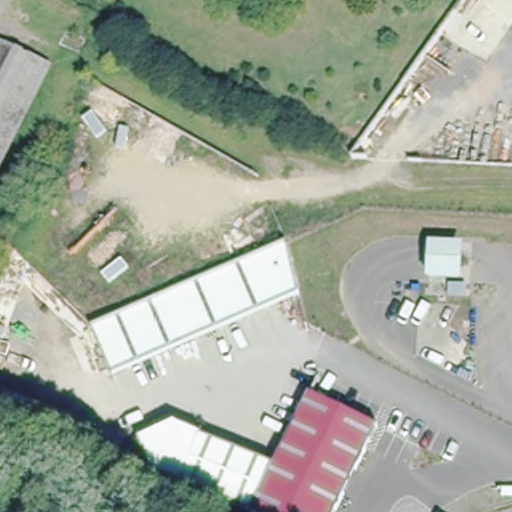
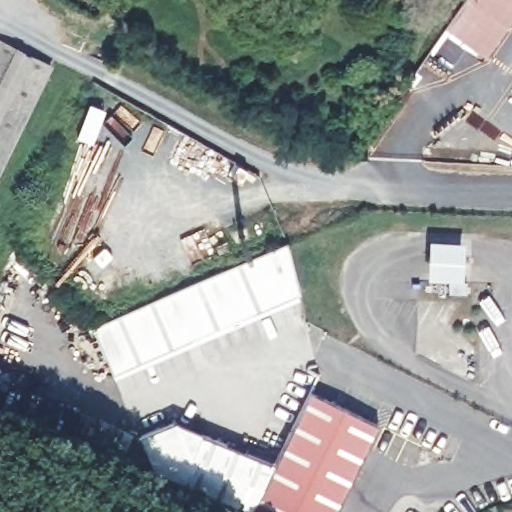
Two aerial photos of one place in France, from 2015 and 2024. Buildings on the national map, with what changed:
new [(512,0),(512,20),(486,56),(445,26),(463,0),(512,0)]
unchanged [(0,38),(43,59),(0,156),(0,38)]
unchanged [(462,275),(425,274),(426,239),(464,242),(462,275)]
unchanged [(295,261),(303,294),(117,376),(97,330),(101,329),(203,284),(266,256),(289,245),(295,261)]
unchanged [(279,461),(318,390),(382,423),(367,453),(338,512),(255,512),(279,461)]
unchanged [(132,459),(140,431),(179,412),(181,419),(215,432),(279,461),(255,512),(252,512),(154,470),(132,459)]

